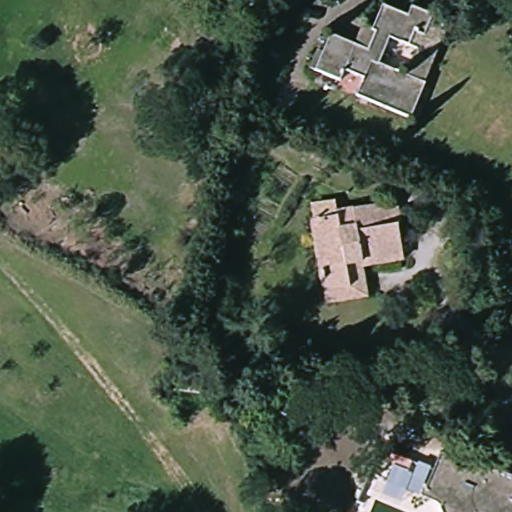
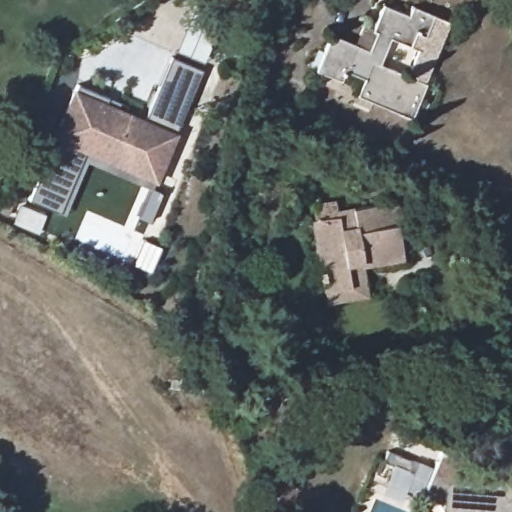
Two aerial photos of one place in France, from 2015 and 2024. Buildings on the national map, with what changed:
unchanged [(332,29),(357,39),(365,22),(373,25),(385,1),(407,11),(411,2),(450,18),(442,35),(421,82),(426,85),(408,122),(353,97),(357,88),(339,79),(314,67),(332,29)]
new [(222,20),(203,63),(176,51),(195,8),(222,20)]
new [(177,134),(152,191),(85,163),(65,215),(28,199),(75,85),(117,102),(115,107),(144,119),(169,59),(199,72),(177,134)]
unchanged [(392,229),(397,231),(397,265),(346,266),(344,278),(315,279),(314,207),(347,207),(349,199),(391,199),(392,229)]
new [(46,215),(38,235),(11,225),(19,205),(46,215)]
new [(142,240),(161,247),(150,272),(131,264),(142,240)]
unchanged [(512,510),(512,512),(462,512),(442,502),(448,487),(430,477),(445,446),(472,457),(470,461),(502,476),(508,463),(512,465),(512,505),(510,509),(512,510)]

